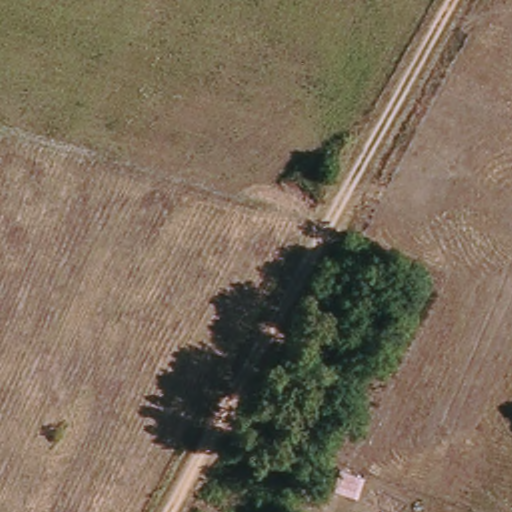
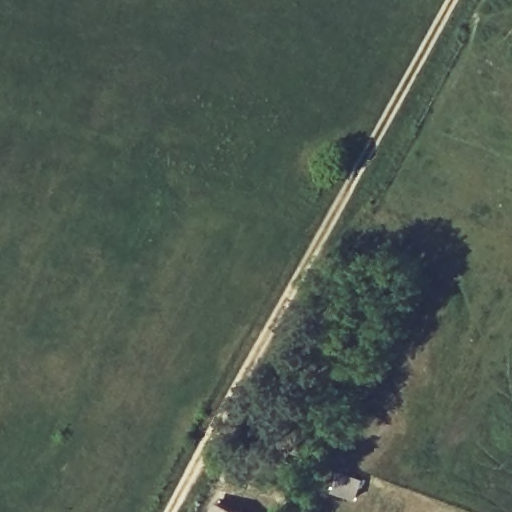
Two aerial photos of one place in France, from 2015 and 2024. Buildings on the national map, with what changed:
new [(241,512),(209,512),(214,500),(241,512)]

